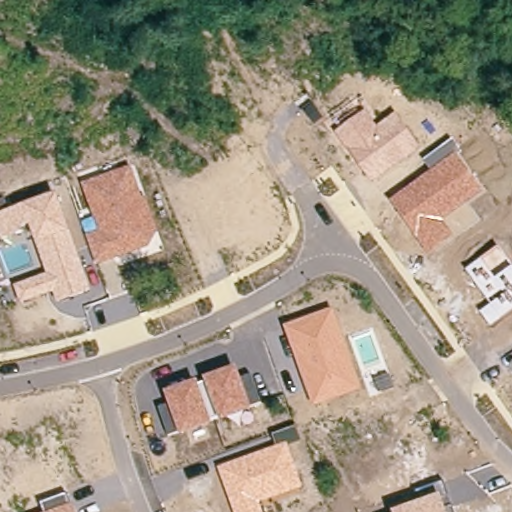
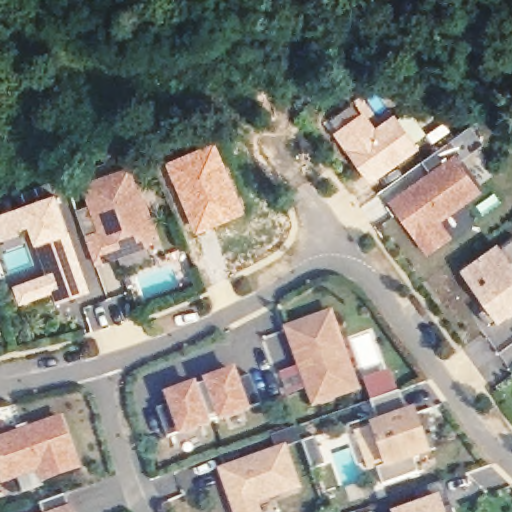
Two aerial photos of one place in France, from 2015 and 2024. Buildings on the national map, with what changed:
unchanged [(377,127),(394,114),(420,148),(371,184),(334,133),(366,111),(377,127)]
unchanged [(421,161),(452,139),(461,152),(457,156),(484,193),(444,222),(455,236),(426,256),(388,200),(430,171),(421,161)]
new [(215,140),(247,213),(195,236),(164,162),(215,140)]
unchanged [(81,182),(130,166),(139,192),(147,197),(158,231),(146,250),(96,268),(85,235),(98,231),(81,182)]
unchanged [(14,285),(48,274),(37,242),(32,228),(1,239),(0,236),(0,216),(24,207),(57,195),(70,233),(91,292),(56,305),(52,292),(20,303),(14,285)]
new [(500,243),(512,260),(512,314),(501,322),(462,271),(500,243)]
unchanged [(284,327),(332,311),(361,390),(313,407),(284,327)]
unchanged [(235,366),(240,379),(251,375),(260,401),(250,406),(252,411),(180,437),(178,432),(169,436),(159,409),(169,405),(165,393),(235,366)]
new [(438,450),(431,452),(416,458),(422,473),(386,486),(380,469),(390,466),(382,444),(378,445),(372,428),(381,424),(373,402),(376,401),(369,381),(390,374),(397,393),(402,391),(410,414),(417,412),(426,439),(433,436),(438,450)]
new [(44,482),(40,471),(3,481),(0,472),(0,437),(63,414),(81,468),(44,482)]
unchanged [(272,435),(296,427),(301,441),(288,447),(303,488),(260,504),(263,512),(233,512),(217,468),(276,447),(272,435)]
unchanged [(414,489),(443,480),(455,512),(392,512),(419,503),(414,489)]
unchanged [(64,496),(67,506),(73,503),(77,512),(44,512),(41,504),(64,496)]

